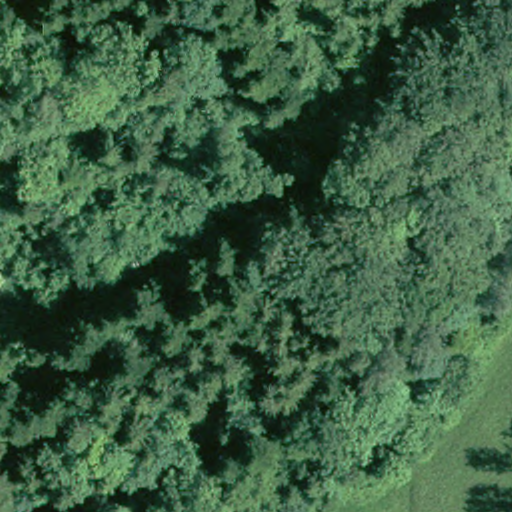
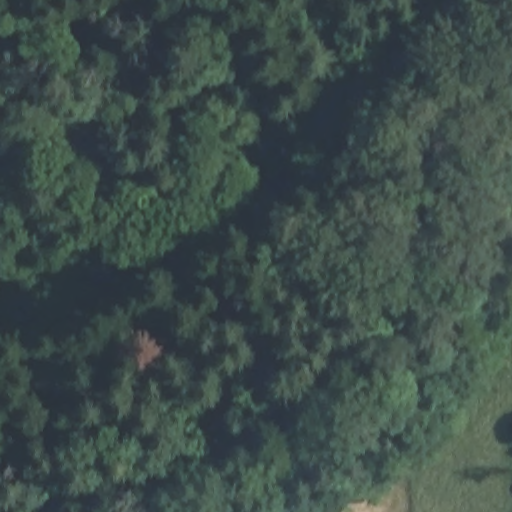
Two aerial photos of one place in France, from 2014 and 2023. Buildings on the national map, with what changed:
[]

